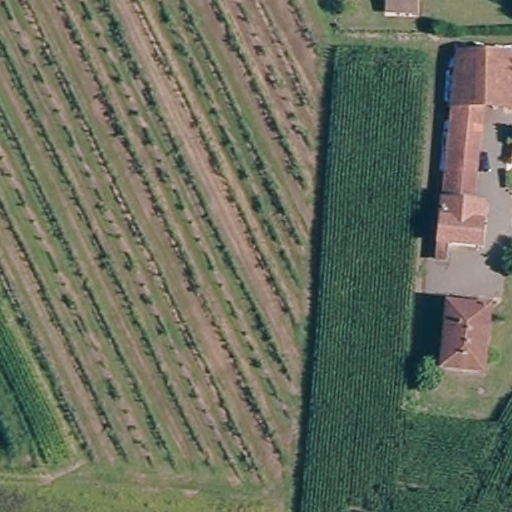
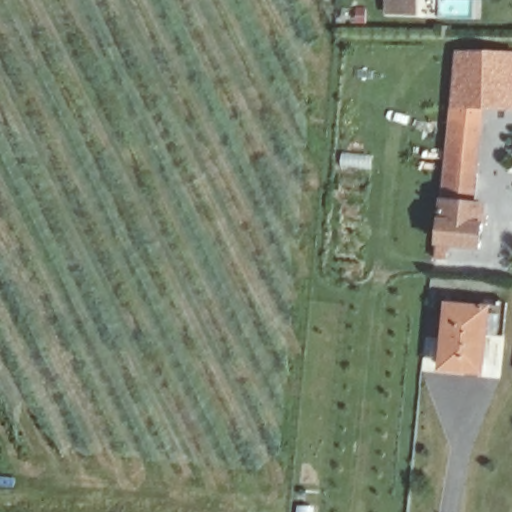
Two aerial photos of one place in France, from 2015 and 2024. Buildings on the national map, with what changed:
unchanged [(397,5),(397,0),(424,0),(424,6),(397,5)]
unchanged [(447,241),(445,257),(437,256),(458,50),(512,50),(512,104),(481,104),(474,171),(464,169),(461,199),(484,202),(479,244),(447,241)]
unchanged [(492,312),(486,373),(449,369),(454,308),(492,312)]

